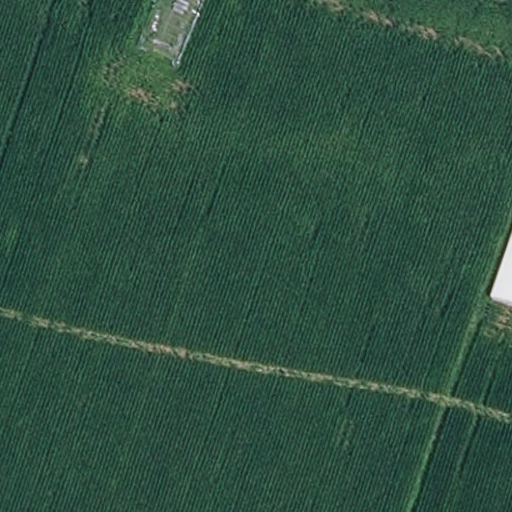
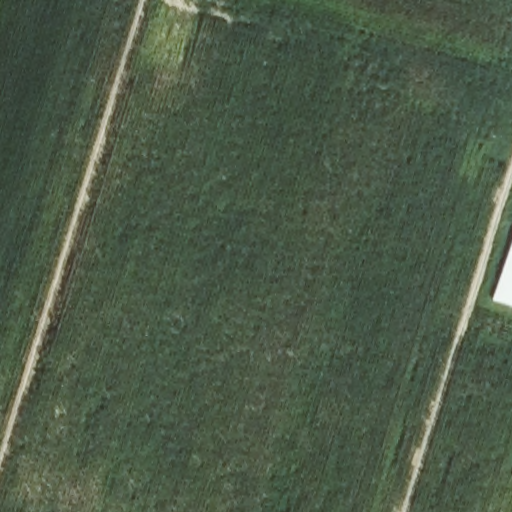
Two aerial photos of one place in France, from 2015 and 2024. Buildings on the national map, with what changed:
unchanged [(512,243),(512,304),(493,298),(512,243)]

